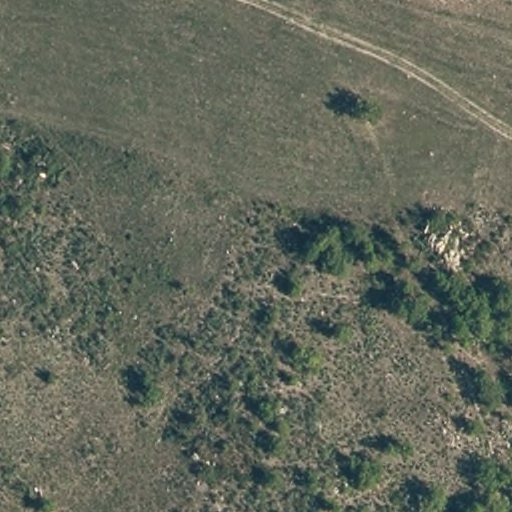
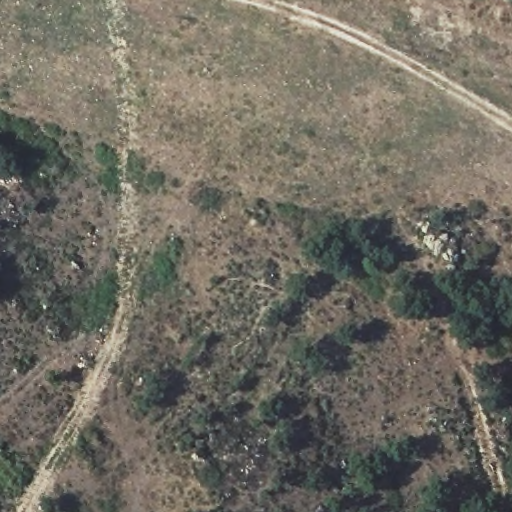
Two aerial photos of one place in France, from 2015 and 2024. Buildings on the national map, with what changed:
[]

